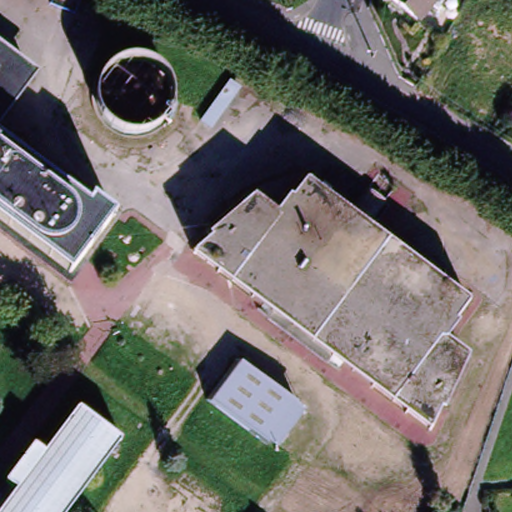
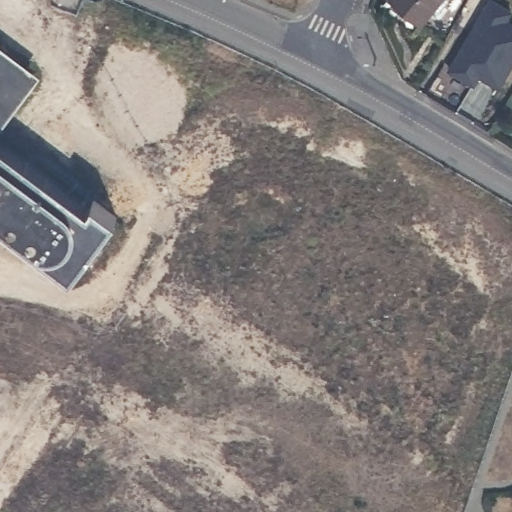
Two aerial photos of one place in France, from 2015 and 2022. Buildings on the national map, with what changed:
unchanged [(433,2),(421,17),(401,0),(446,0),(440,7),(433,2)]
unchanged [(0,129),(0,43),(41,75),(0,129)]
demolished [(483,111),(440,76),(461,50),(504,84),(483,111)]
unchanged [(95,199),(116,215),(73,275),(0,223),(0,134),(90,205),(95,199)]
demolished [(468,303),(470,305),(442,343),(465,360),(431,431),(401,408),(326,352),(249,295),(196,255),(256,204),(280,221),(308,183),(310,185),(310,186),(347,215),(368,189),(389,205),(369,231),(418,267),(467,305),(468,303)]
demolished [(270,445),(208,400),(239,358),(243,361),(300,403),(298,405),(271,443),(270,445)]
demolished [(10,486),(10,487),(7,486),(35,448),(38,450),(37,451),(47,458),(80,415),(78,415),(80,411),(125,445),(122,448),(120,447),(71,512),(7,512),(20,493),(10,486)]

